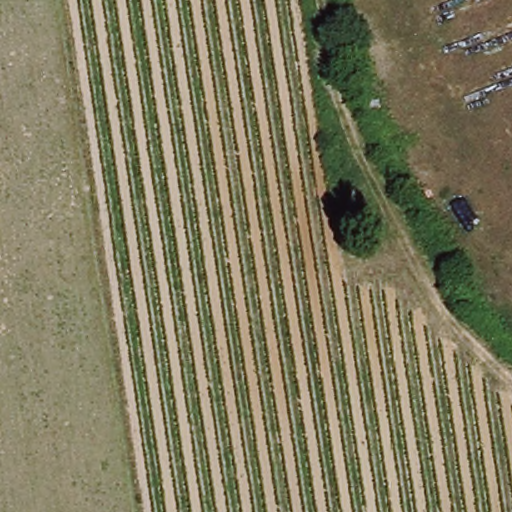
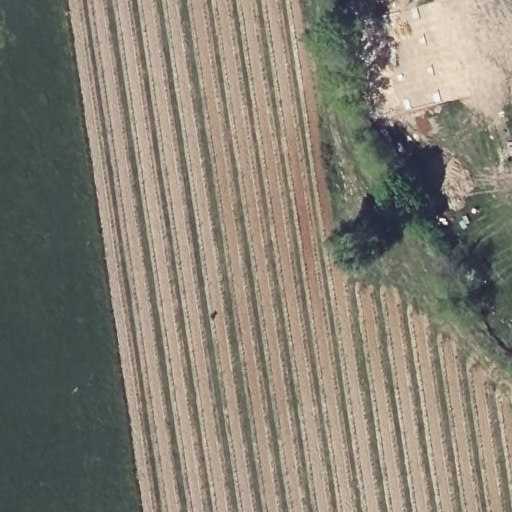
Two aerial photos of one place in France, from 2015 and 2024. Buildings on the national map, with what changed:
[]

